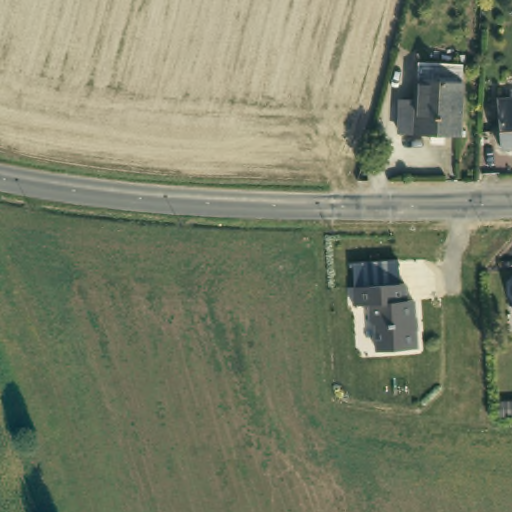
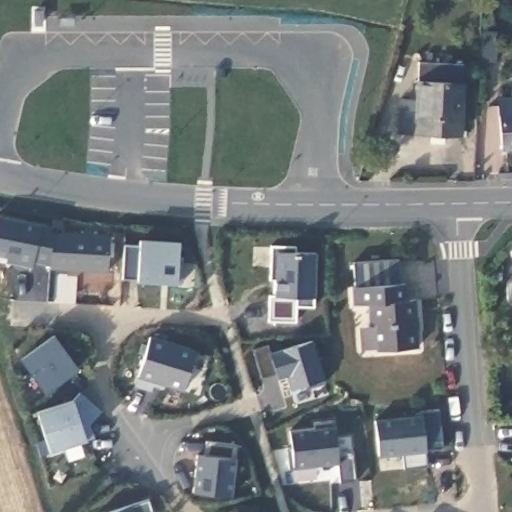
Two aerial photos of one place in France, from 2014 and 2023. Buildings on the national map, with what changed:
unchanged [(460,133),(415,132),(415,64),(461,64),(460,133)]
unchanged [(497,147),(497,100),(512,100),(512,147),(497,147)]
new [(34,262),(33,267),(6,263),(6,258),(0,257),(0,218),(52,227),(49,265),(34,262)]
new [(177,284),(135,280),(125,278),(126,245),(139,246),(140,240),(180,242),(177,284)]
new [(314,308),(298,308),(296,322),(267,320),(268,293),(272,293),(273,279),(270,279),(272,245),(295,247),(295,251),(317,252),(314,308)]
new [(398,282),(354,285),(353,262),(398,260),(398,282)]
unchanged [(410,281),(412,302),(420,301),(425,349),(385,352),(380,323),(374,316),(372,305),(356,305),(354,285),(410,281)]
new [(44,392),(20,359),(54,334),(78,368),(44,392)]
new [(195,351),(182,391),(164,386),(162,391),(151,387),(150,392),(133,388),(149,337),(195,351)]
new [(291,389),(287,376),(276,380),(273,373),(262,377),(255,350),(267,344),(269,351),(310,338),(325,380),(291,389)]
new [(71,401),(72,404),(79,394),(100,411),(88,425),(94,437),(81,445),(76,444),(50,452),(36,413),(71,401)]
new [(421,416),(420,412),(438,410),(442,450),(427,451),(428,467),(403,469),(402,454),(377,456),(373,419),(421,416)]
new [(332,421),(333,427),(336,427),(338,454),(352,452),(355,480),(340,482),(338,464),(290,469),(286,449),(290,448),(289,432),(316,430),(315,423),(332,421)]
new [(192,492),(196,454),(205,456),(207,439),(239,444),(231,497),(192,492)]
new [(131,506),(149,500),(153,512),(112,512),(131,506)]

